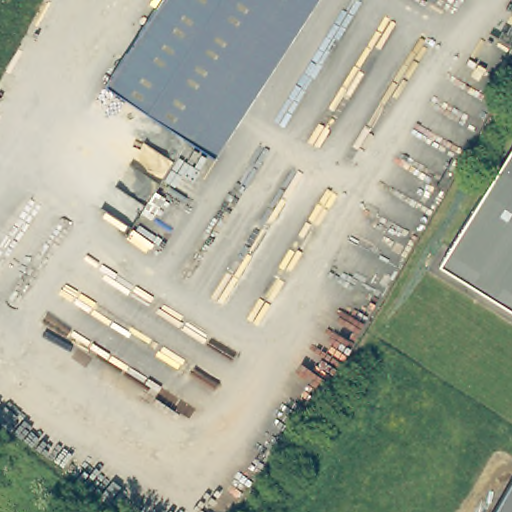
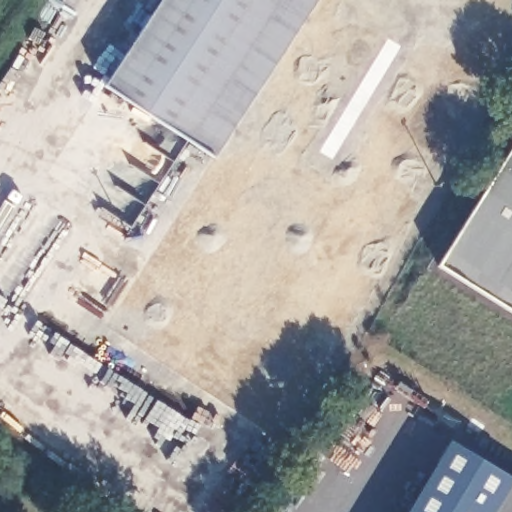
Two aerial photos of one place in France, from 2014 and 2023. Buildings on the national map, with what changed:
unchanged [(162,0),(281,0),(187,147),(102,92),(162,0)]
unchanged [(187,147),(281,0),(318,0),(212,164),(187,147)]
unchanged [(433,0),(431,3),(426,0),(433,0)]
unchanged [(512,315),(436,267),(512,145),(512,315)]
new [(448,440),(511,478),(510,480),(491,512),(406,512),(448,440)]
unchanged [(510,480),(512,482),(512,512),(491,512),(510,480)]

